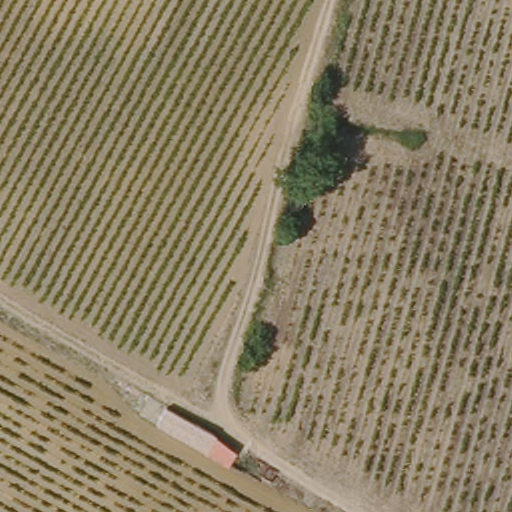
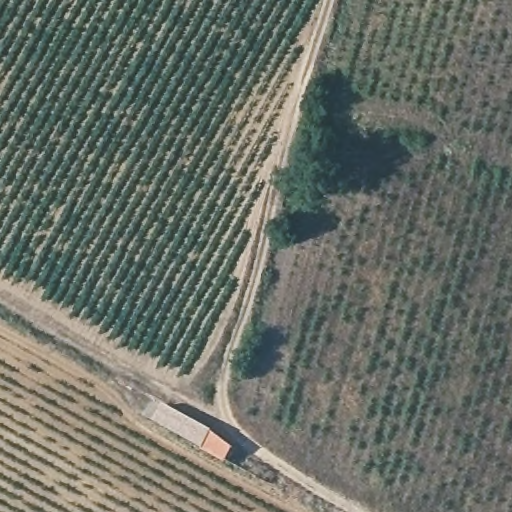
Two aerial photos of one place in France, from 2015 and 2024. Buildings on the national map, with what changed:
unchanged [(194,418),(239,444),(231,461),(185,435),(194,418)]

